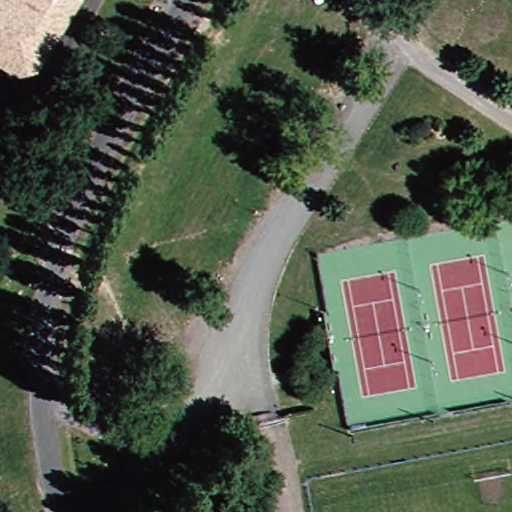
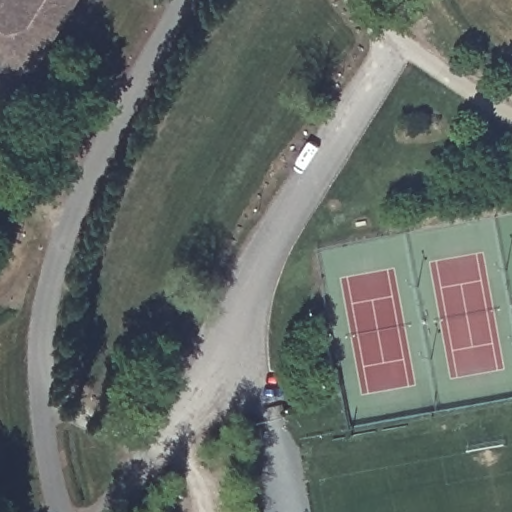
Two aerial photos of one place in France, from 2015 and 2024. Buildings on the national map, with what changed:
unchanged [(0,58),(0,0),(83,0),(42,68),(23,71),(0,58)]

